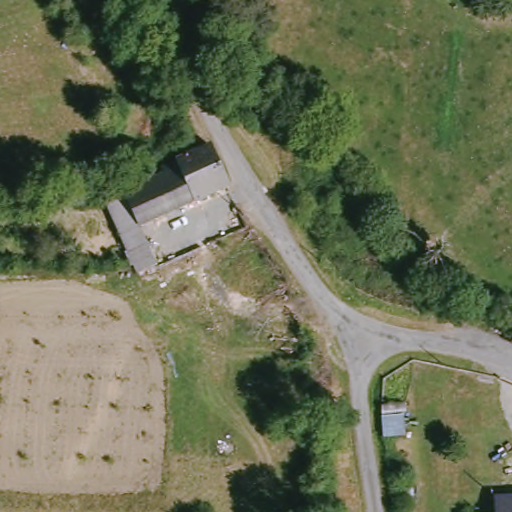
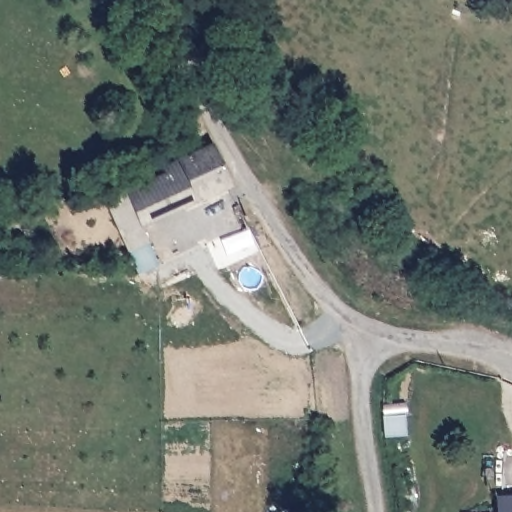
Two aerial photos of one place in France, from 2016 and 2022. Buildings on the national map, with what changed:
unchanged [(148,224),(165,261),(146,269),(112,199),(173,171),(171,160),(213,141),(216,140),(239,183),(148,224)]
unchanged [(504,497),(512,497),(512,512),(505,512),(504,497)]

